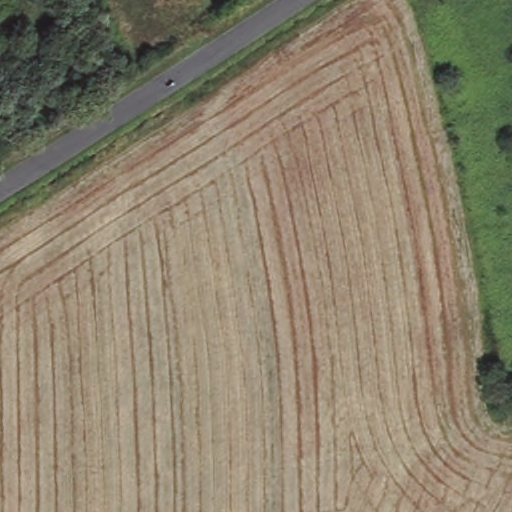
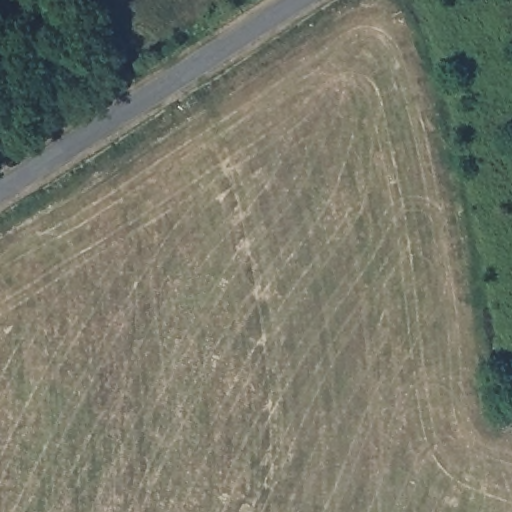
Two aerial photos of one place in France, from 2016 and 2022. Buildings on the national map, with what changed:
[]

